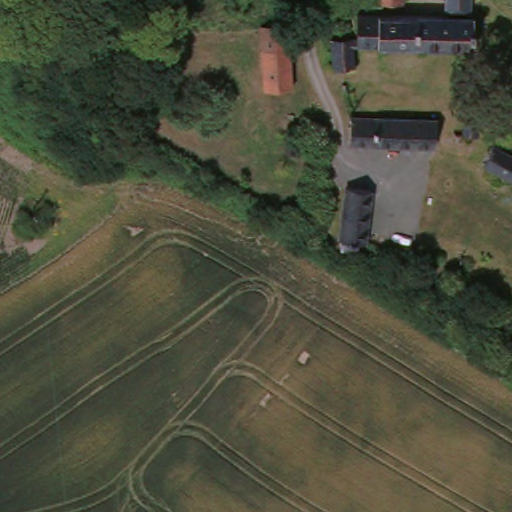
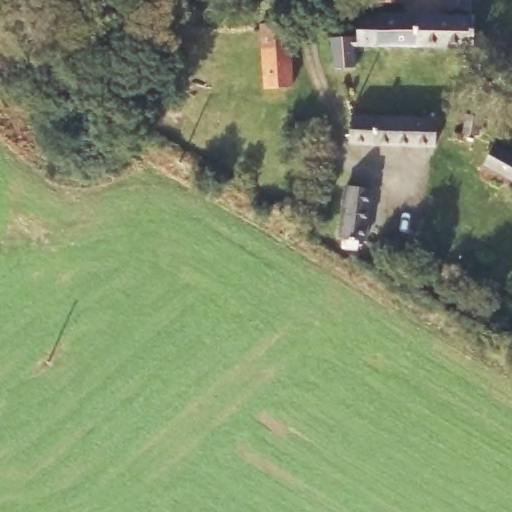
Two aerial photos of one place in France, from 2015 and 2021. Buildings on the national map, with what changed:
unchanged [(404,9),(378,8),(378,0),(404,0),(404,9)]
unchanged [(446,21),(447,0),(469,0),(469,11),(471,11),(470,22),(474,22),(472,54),(471,54),(415,52),(416,21),(446,21)]
unchanged [(358,51),(359,20),(379,20),(416,21),(415,52),(379,52),(358,51)]
unchanged [(266,96),(263,30),(289,29),(293,95),(266,96)]
unchanged [(333,44),(354,43),(354,73),(334,74),(333,59),(333,44)]
unchanged [(465,116),(482,118),(479,138),(463,136),(464,120),(465,116)]
unchanged [(349,145),(351,132),(352,117),(376,119),(437,120),(435,148),(372,146),(349,145)]
unchanged [(478,173),(494,148),(512,156),(512,192),(478,173)]
unchanged [(349,255),(351,246),(343,245),(349,198),(351,192),(378,196),(370,249),(363,248),(361,257),(349,255)]

